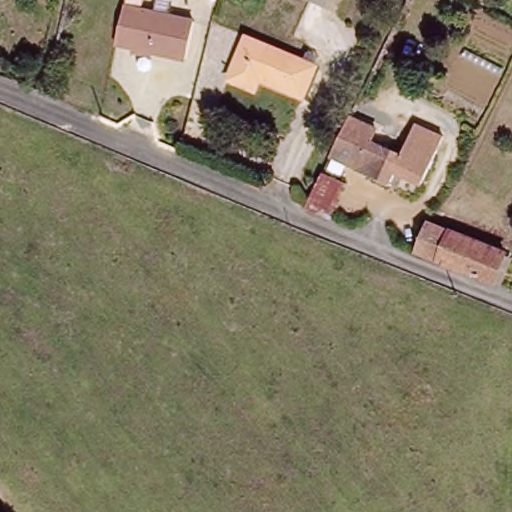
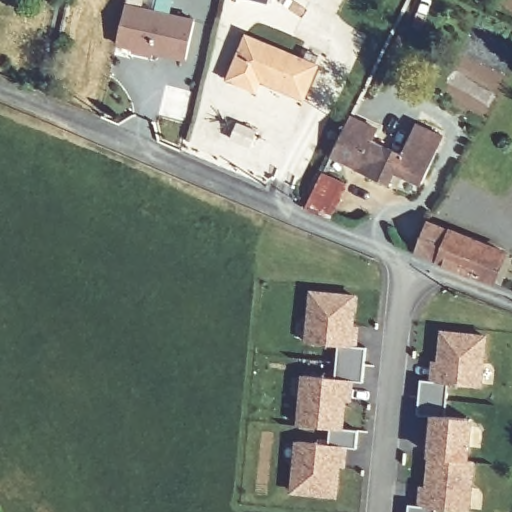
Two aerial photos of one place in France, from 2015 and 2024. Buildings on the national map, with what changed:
unchanged [(185,58),(115,43),(126,0),(143,0),(143,2),(192,17),(185,58)]
unchanged [(339,19),(305,2),(306,0),(347,0),(339,19)]
unchanged [(246,35),(317,67),(300,104),(261,86),(258,95),(226,81),(246,35)]
unchanged [(443,135),(420,184),(415,180),(388,168),(383,180),(355,167),(355,165),(331,154),(349,116),(375,129),(370,140),(400,154),(407,140),(416,123),(443,135)]
unchanged [(322,181),(340,190),(324,226),(304,219),(322,181)]
unchanged [(432,220),(506,249),(495,280),(419,250),(432,220)]
new [(357,294),(354,326),(358,327),(358,347),(365,348),(361,381),(353,380),(351,402),(347,401),(343,428),(357,430),(355,448),(347,447),(345,468),(340,467),(337,497),(290,495),(295,442),(330,444),(331,428),(296,424),(300,376),(335,379),(338,345),(305,342),(310,290),(357,294)]
new [(483,385),(448,383),(445,416),(473,419),(470,462),(475,461),(471,511),(436,508),(436,512),(408,512),(408,505),(417,506),(419,486),(425,486),(427,457),(431,415),(418,415),(421,380),(430,381),(431,360),(436,361),(440,330),(486,335),(483,385)]

